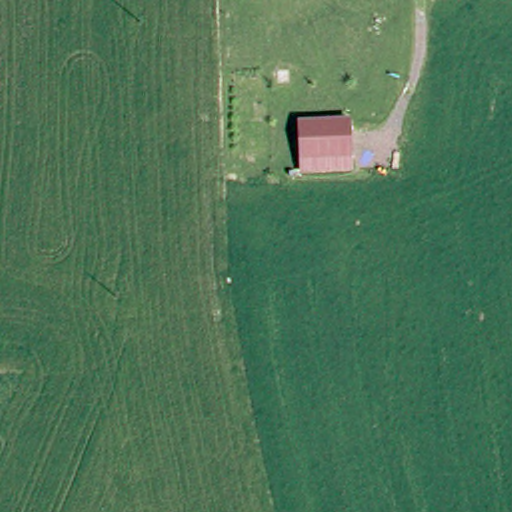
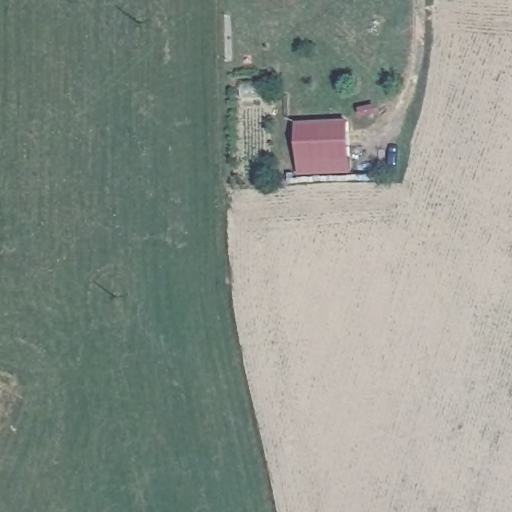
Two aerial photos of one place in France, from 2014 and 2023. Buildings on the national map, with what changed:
unchanged [(346,122),(347,159),(297,160),(296,124),(346,122)]

